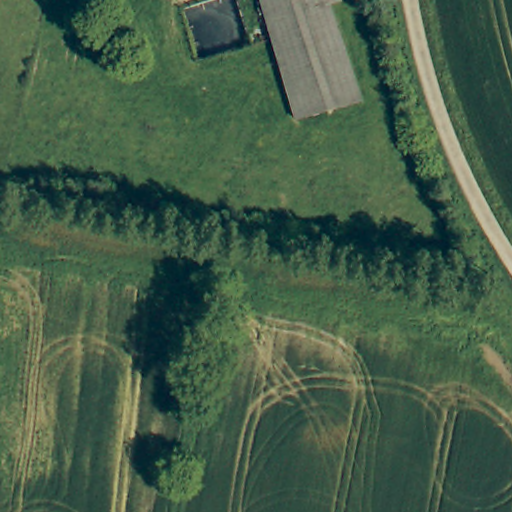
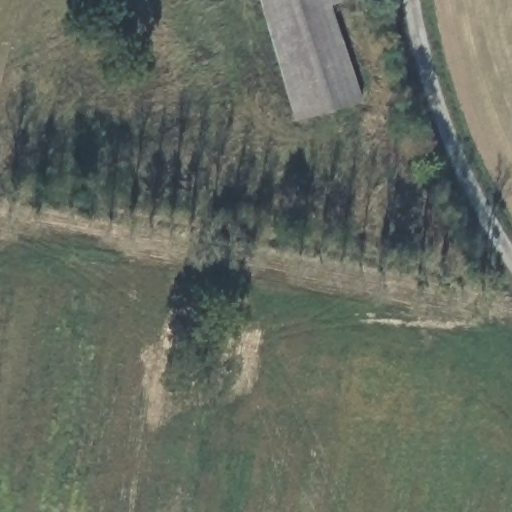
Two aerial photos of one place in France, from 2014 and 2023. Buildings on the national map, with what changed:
unchanged [(262,0),(341,0),(341,2),(331,4),(357,103),(294,119),(262,0)]

